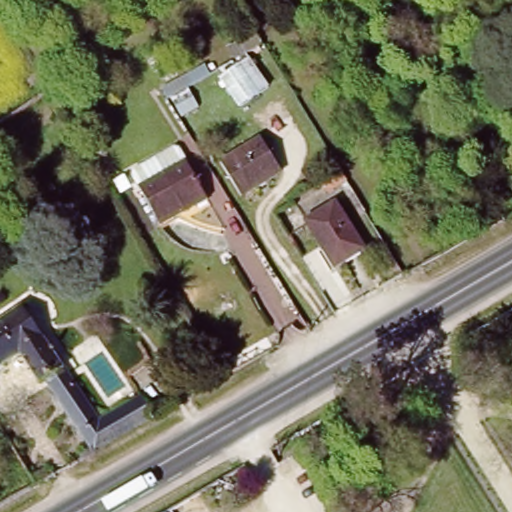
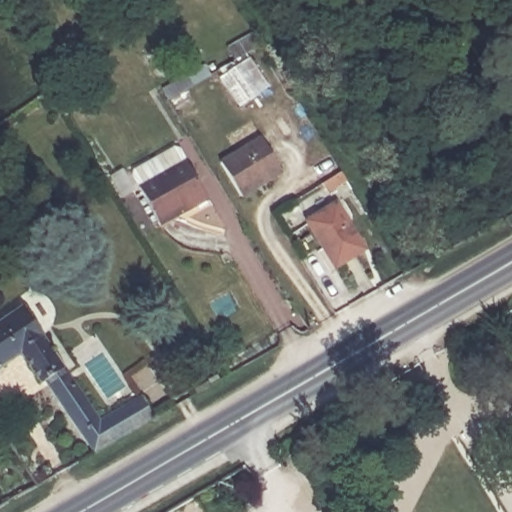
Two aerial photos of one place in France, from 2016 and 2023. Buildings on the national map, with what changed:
unchanged [(264,44),(250,54),(270,89),(242,106),(220,72),(238,60),(228,43),(252,24),(264,44)]
unchanged [(262,141),(281,175),(241,199),(221,166),(262,141)]
unchanged [(160,233),(137,195),(139,189),(180,163),(187,164),(210,202),(160,233)]
unchanged [(331,203),(359,249),(330,267),(302,220),(331,203)]
unchanged [(94,457),(46,384),(41,388),(21,358),(0,372),(0,324),(21,310),(98,426),(141,401),(154,423),(94,457)]
unchanged [(49,479),(36,487),(30,476),(43,469),(49,479)]

